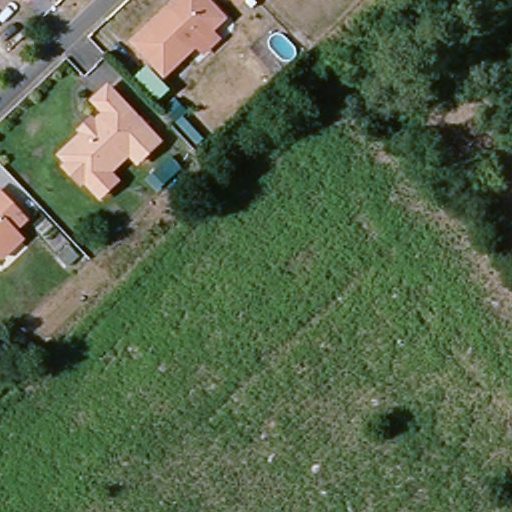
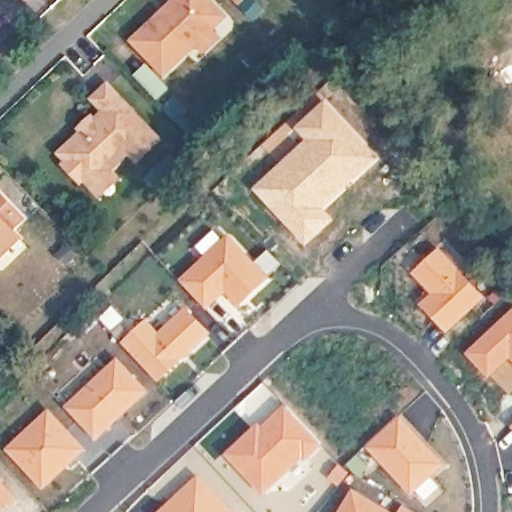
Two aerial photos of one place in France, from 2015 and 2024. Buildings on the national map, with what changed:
unchanged [(186,59),(166,78),(135,46),(182,1),(182,0),(207,0),(226,21),(213,33),(186,59)]
unchanged [(239,9),(231,0),(248,0),(239,9)]
unchanged [(105,197),(97,188),(89,180),(82,179),(73,170),(73,163),(65,155),(89,133),(85,129),(94,120),(98,124),(110,113),(98,100),(111,87),(163,141),(142,161),(134,152),(112,173),(121,182),(105,197)]
unchanged [(165,113),(177,102),(190,115),(184,122),(178,127),(165,113)]
new [(327,210),(336,220),(307,247),(255,190),(333,118),(328,112),(333,108),(379,159),(327,210)]
unchanged [(22,220),(10,231),(18,239),(0,256),(0,197),(22,220)]
new [(226,294),(206,308),(178,282),(229,235),(256,263),(269,252),(283,267),(239,308),(226,294)]
new [(412,274),(440,248),(484,297),(446,334),(419,304),(429,294),(412,274)]
new [(188,307),(213,334),(161,383),(123,343),(148,319),(159,334),(188,307)]
new [(489,379),(466,354),(512,312),(512,359),(511,358),(489,379)]
new [(118,357),(152,392),(95,445),(64,409),(118,357)]
new [(225,455),(258,425),(261,429),(288,406),(324,445),(266,499),(225,455)]
new [(88,450),(44,491),(6,450),(50,409),(88,450)]
new [(365,446),(399,416),(444,466),(411,495),(365,446)]
new [(1,512),(0,512),(0,481),(16,499),(1,512)]
new [(198,493),(207,484),(234,512),(159,512),(180,492),(198,493)]
new [(392,512),(339,512),(353,489),(392,512)]
new [(411,512),(401,512),(404,508),(411,512)]

